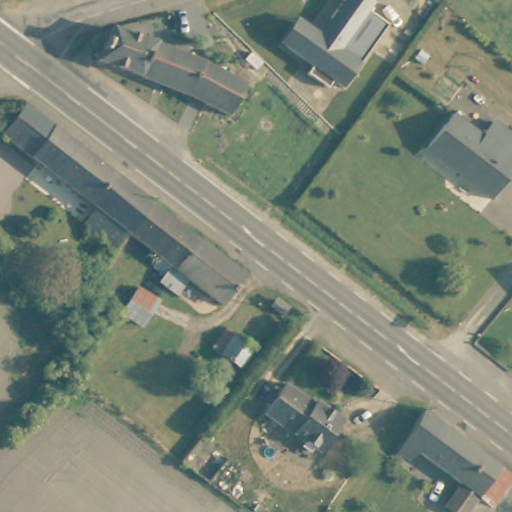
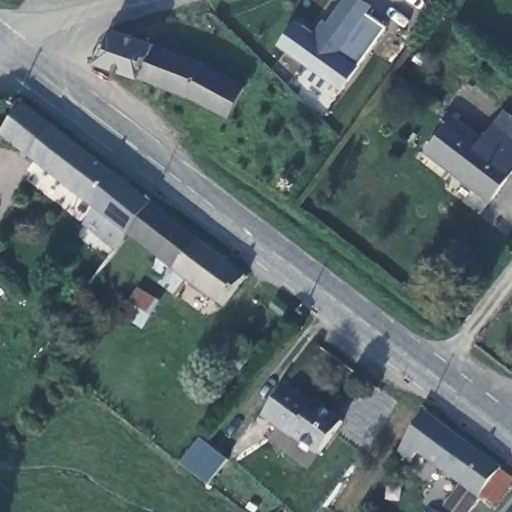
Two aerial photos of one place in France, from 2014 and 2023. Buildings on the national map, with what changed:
unchanged [(325,80),(320,88),(300,74),(305,66),(279,48),(296,24),(319,39),(328,26),(323,23),(339,0),(348,0),(381,24),(335,88),(325,80)]
unchanged [(192,60),(239,85),(223,115),(171,90),(91,61),(106,29),(192,60)]
unchanged [(152,200),(129,233),(118,249),(100,234),(96,238),(85,229),(88,225),(84,222),(96,207),(1,133),(25,101),(152,200)]
unchanged [(512,142),(512,176),(492,204),(425,155),(451,120),(480,142),(491,126),(512,142)]
unchanged [(247,274),(240,284),(225,304),(189,279),(178,295),(159,282),(164,273),(154,264),(159,255),(129,233),(152,200),(247,274)]
unchanged [(163,339),(121,313),(136,285),(179,310),(163,339)]
unchanged [(241,368),(213,347),(227,326),(255,348),(241,368)]
unchanged [(284,381),(315,403),(317,399),(344,417),(321,452),(265,414),(284,381)]
unchanged [(510,486),(495,510),(481,502),(473,512),(448,512),(463,489),(419,455),(412,466),(398,456),(420,422),(426,413),(501,469),(512,478),(512,481),(510,486)]
demolished [(228,456),(209,483),(180,460),(201,435),(228,456)]

